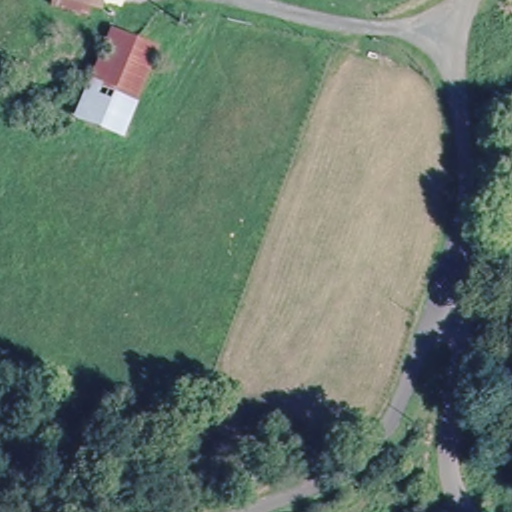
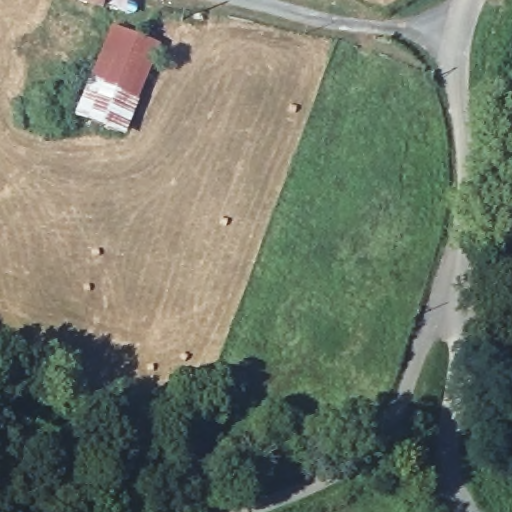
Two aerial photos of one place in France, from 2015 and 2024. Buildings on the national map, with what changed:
unchanged [(51,5),(52,0),(82,0),(80,12),(51,5)]
unchanged [(161,50),(123,140),(74,120),(111,28),(161,50)]

